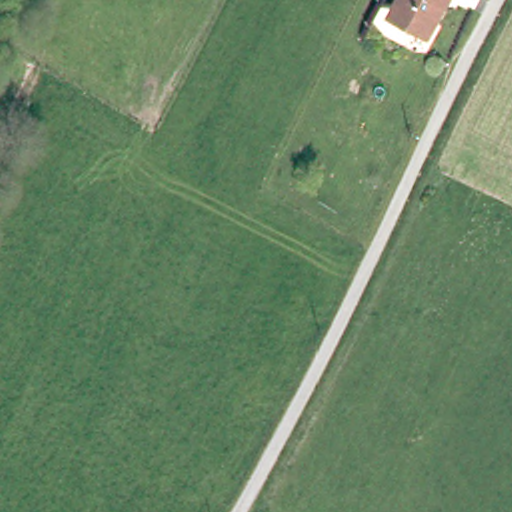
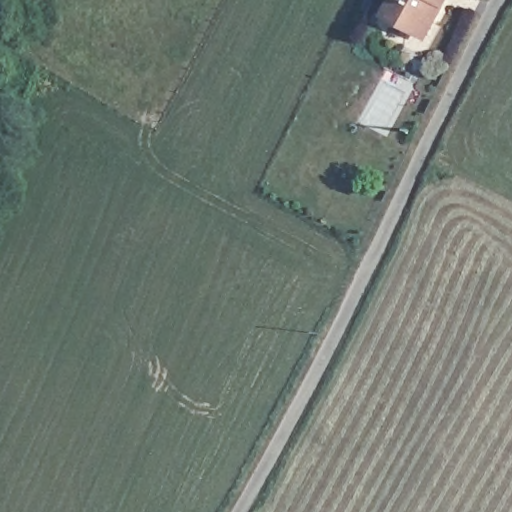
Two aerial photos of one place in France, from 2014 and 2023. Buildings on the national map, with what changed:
unchanged [(388,14),(395,0),(448,0),(429,37),(388,14)]

